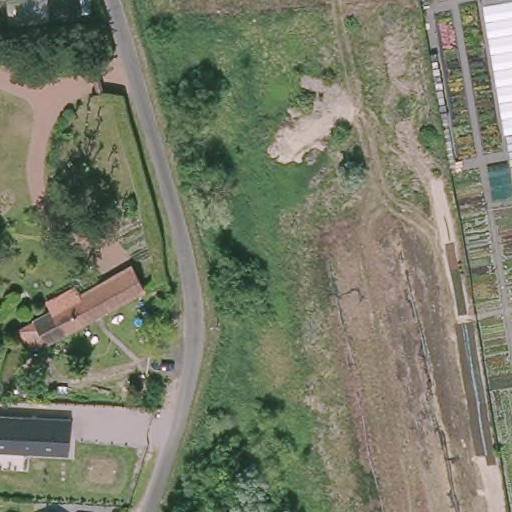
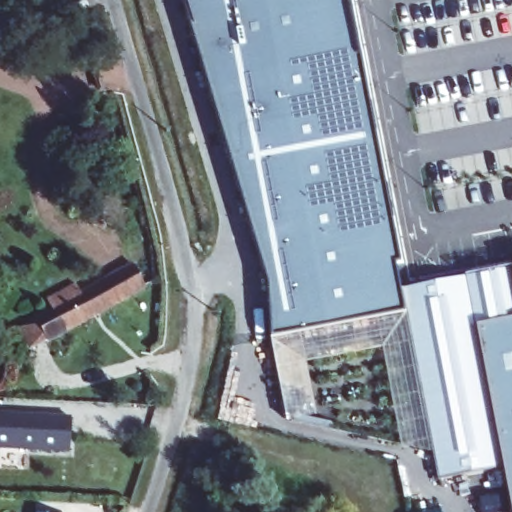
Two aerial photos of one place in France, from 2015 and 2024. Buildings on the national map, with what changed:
new [(183,0),(350,0),(400,263),(395,265),(399,289),(512,268),(512,512),(508,512),(500,468),(435,480),(431,455),(404,312),(269,337),(266,283),(183,0)]
demolished [(512,132),(512,174),(505,134),(512,132)]
unchanged [(33,351),(22,330),(39,321),(37,318),(54,308),(49,300),(72,286),(77,296),(128,266),(142,288),(33,351)]
new [(404,312),(431,455),(401,448),(382,346),(302,360),(312,413),(284,418),(269,337),(404,312)]
unchanged [(71,415),(70,452),(0,449),(0,413),(71,415)]

